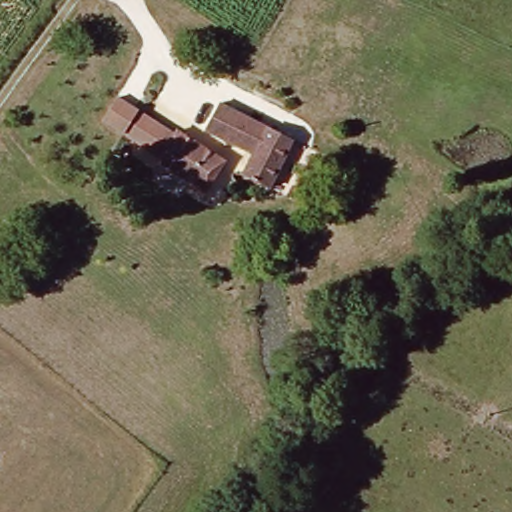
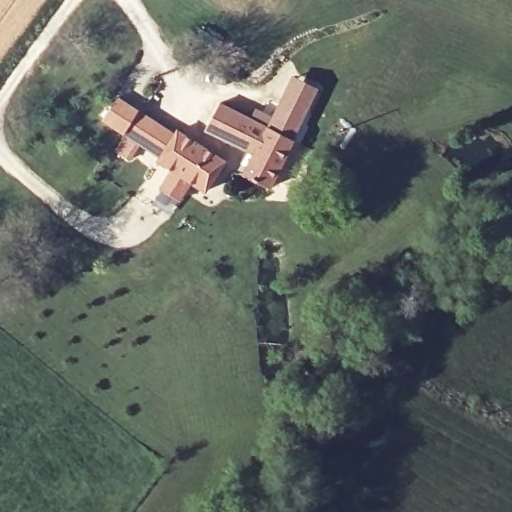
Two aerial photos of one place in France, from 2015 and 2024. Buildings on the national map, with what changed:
new [(317,90),(291,143),(274,133),(250,121),(256,107),(272,116),(291,77),(317,90)]
unchanged [(179,131),(228,157),(208,192),(160,162),(165,154),(104,125),(122,97),(179,131)]
unchanged [(274,133),(291,143),(278,187),(251,176),(257,159),(212,129),(224,107),(274,133)]

